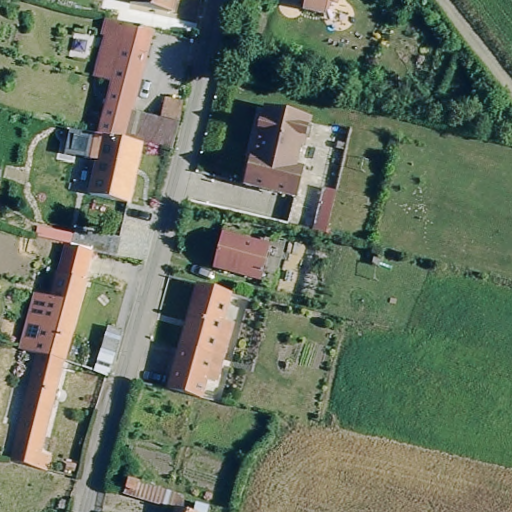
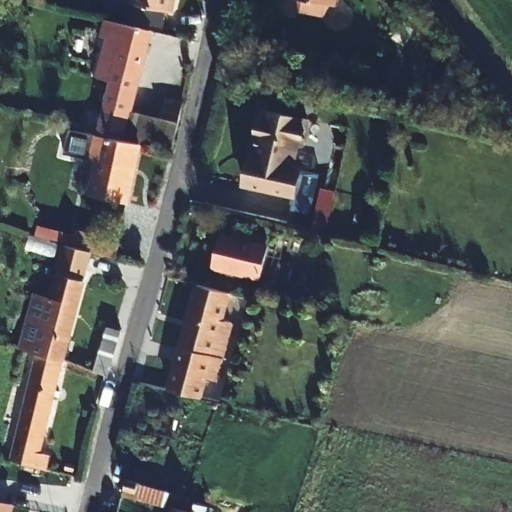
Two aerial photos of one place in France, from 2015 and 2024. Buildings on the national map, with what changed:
unchanged [(144,0),(184,0),(181,12),(171,9),(167,25),(139,18),(144,0)]
unchanged [(332,2),(326,1),(324,11),(297,5),(299,0),(332,0),(332,2)]
unchanged [(132,109),(160,117),(165,97),(182,101),(181,108),(171,149),(121,139),(101,135),(112,82),(97,78),(110,29),(112,29),(114,22),(152,31),(132,109)]
unchanged [(306,145),(299,144),(296,165),(302,167),(295,196),(245,185),(262,107),(310,117),(306,145)]
unchanged [(92,192),(100,162),(90,159),(96,134),(101,135),(121,139),(117,152),(126,154),(128,149),(142,152),(130,200),(125,220),(100,214),(106,195),(92,192)]
unchanged [(258,275),(208,262),(216,230),(266,241),(258,275)]
unchanged [(54,255),(56,245),(61,247),(65,247),(90,254),(95,236),(120,242),(115,261),(127,263),(124,279),(60,264),(62,257),(54,255)]
unchanged [(85,275),(65,358),(40,351),(44,337),(37,335),(40,320),(23,315),(30,287),(54,292),(60,269),(85,275)]
unchanged [(192,366),(190,373),(185,394),(153,387),(182,273),(214,281),(209,302),(217,305),(204,358),(202,367),(192,366)]
unchanged [(89,355),(97,357),(104,327),(120,331),(109,376),(85,367),(89,355)]
unchanged [(65,358),(42,452),(54,455),(52,467),(15,458),(30,393),(23,392),(27,376),(34,377),(40,351),(65,358)]
unchanged [(138,491),(152,494),(151,496),(149,505),(124,498),(127,487),(138,491)]
new [(0,512),(0,499),(16,503),(14,512),(0,512)]
unchanged [(170,509),(170,507),(170,505),(172,506),(190,510),(191,510),(190,512),(168,512),(169,510),(170,509)]

